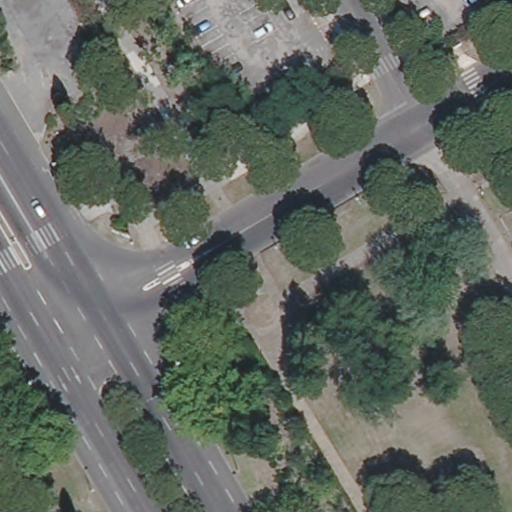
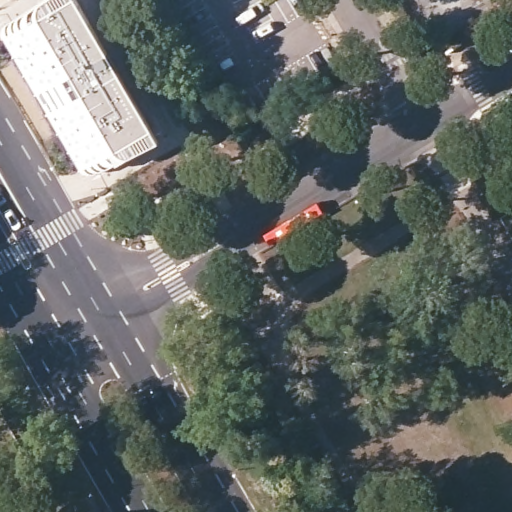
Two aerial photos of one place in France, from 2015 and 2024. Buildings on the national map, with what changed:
new [(40,4),(47,0),(75,0),(157,140),(142,149),(122,151),(82,173),(2,36),(36,17),(40,4)]

